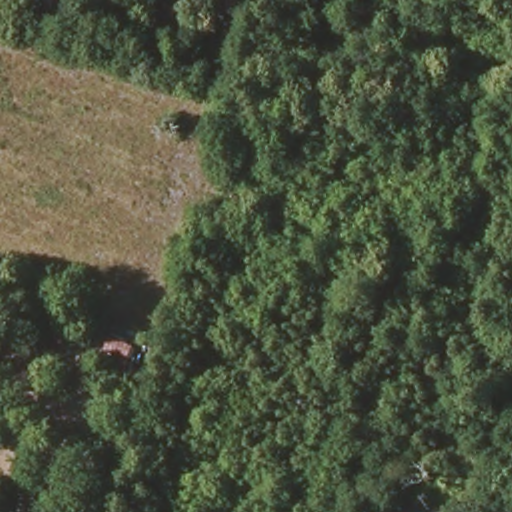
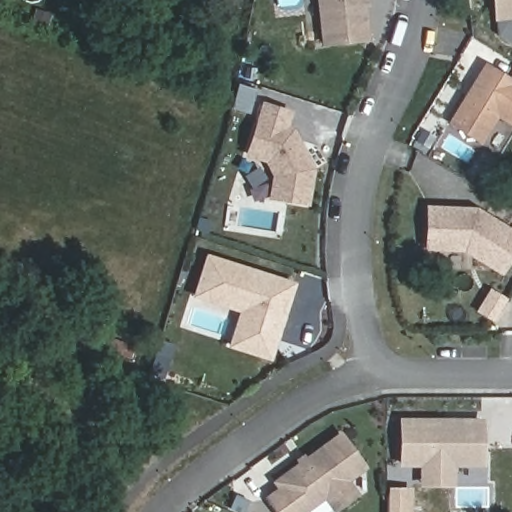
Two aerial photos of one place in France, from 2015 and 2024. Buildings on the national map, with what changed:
new [(370,40),(321,45),(316,0),(369,0),(370,6),(366,6),(370,40)]
new [(494,20),(492,0),(512,0),(512,19),(494,20)]
new [(498,117),(481,144),(446,122),(486,62),(512,78),(512,126),(498,117)]
new [(265,161),(247,156),(261,102),(293,110),(289,126),(293,127),(315,169),(310,205),(268,199),(272,175),(265,161)]
new [(502,275),(463,251),(425,250),(426,206),(476,207),(512,228),(512,259),(502,275)]
new [(193,297),(206,254),(298,281),(273,361),(229,347),(240,311),(193,297)]
new [(441,420),(449,420),(478,420),(478,463),(449,462),(448,482),(419,483),(419,463),(397,462),(398,420),(441,420)]
new [(297,463),(295,460),(304,453),(307,455),(342,431),(368,468),(351,480),(360,494),(335,512),(333,512),(325,499),(306,512),(275,512),(265,497),(277,488),(273,481),(297,463)]
new [(406,491),(406,498),(406,512),(386,512),(386,498),(387,491),(406,491)]

